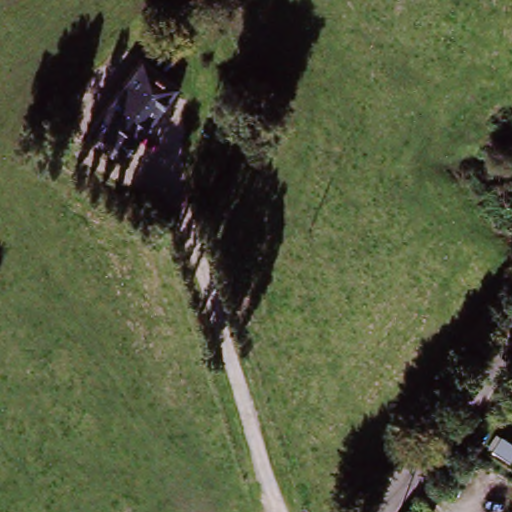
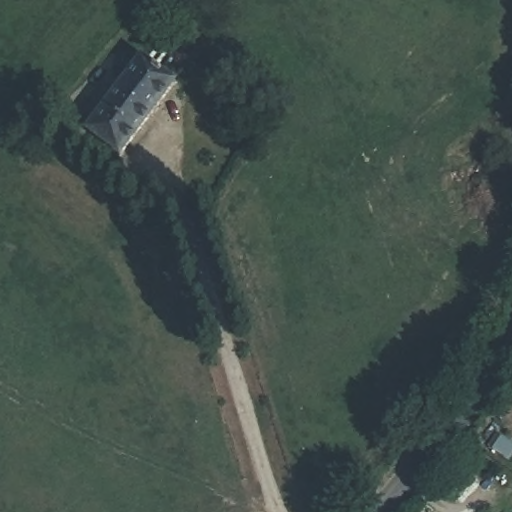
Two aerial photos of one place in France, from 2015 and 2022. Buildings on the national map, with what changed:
unchanged [(118,156),(87,130),(143,59),(157,38),(168,47),(154,68),(173,84),(118,156)]

